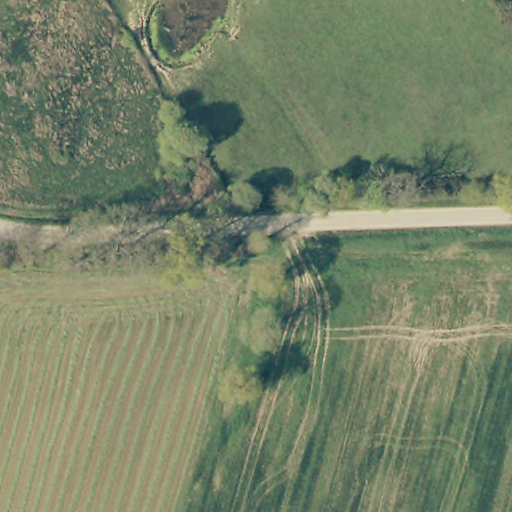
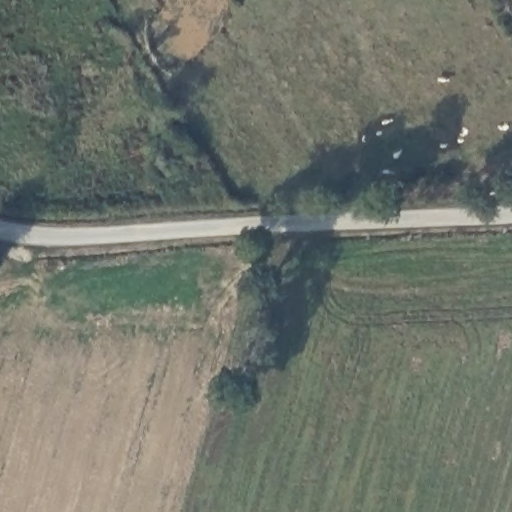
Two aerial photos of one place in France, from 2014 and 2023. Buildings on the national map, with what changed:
[]

